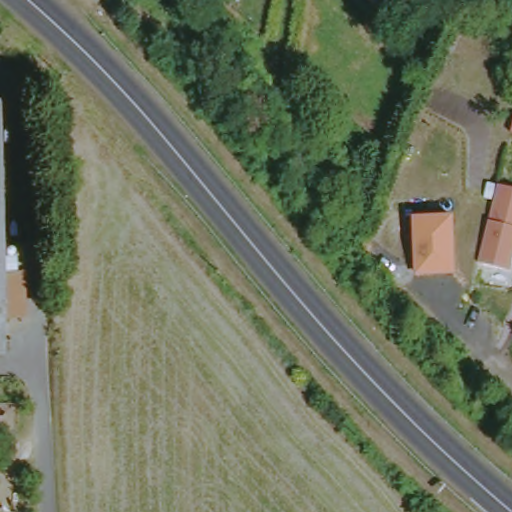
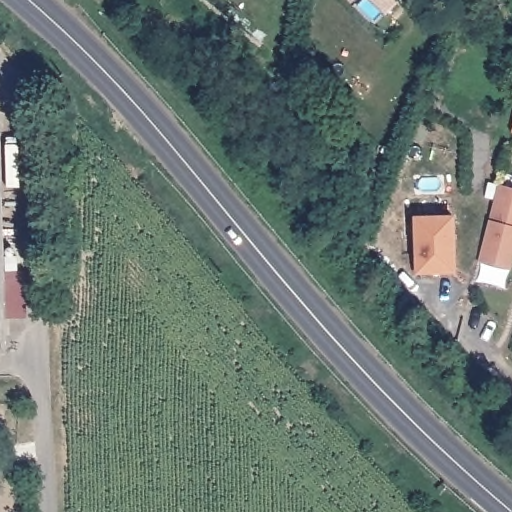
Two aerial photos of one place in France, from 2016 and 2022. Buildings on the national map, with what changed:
unchanged [(390,18),(371,0),(408,0),(390,18)]
unchanged [(4,104),(8,306),(0,306),(0,104),(4,104)]
unchanged [(512,261),(509,272),(480,264),(500,185),(512,189),(512,261)]
unchanged [(457,276),(415,277),(413,219),(457,217),(457,276)]
unchanged [(25,274),(25,320),(10,320),(10,275),(25,274)]
unchanged [(8,306),(8,355),(0,355),(0,306),(8,306)]
unchanged [(0,399),(1,417),(0,417),(0,399)]

